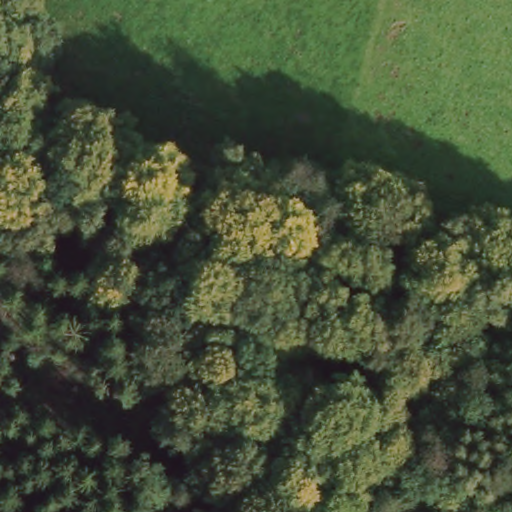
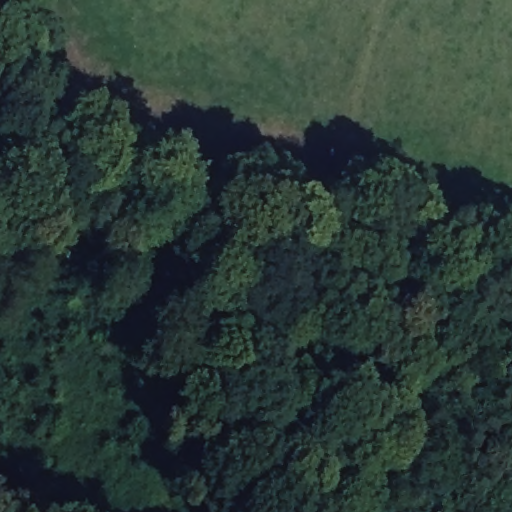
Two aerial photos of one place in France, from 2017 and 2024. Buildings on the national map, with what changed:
unchanged [(320,302),(279,289),(287,263),(329,276),(320,302)]

